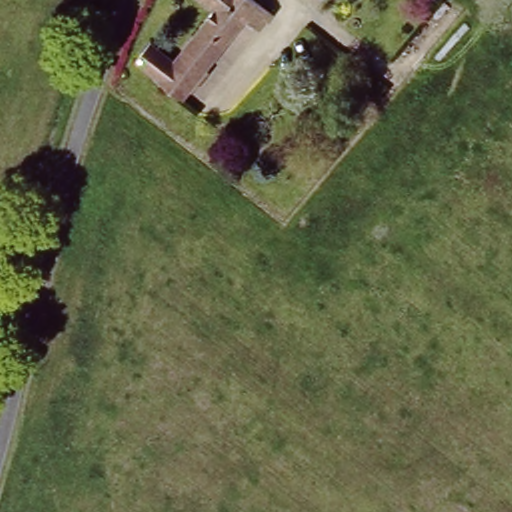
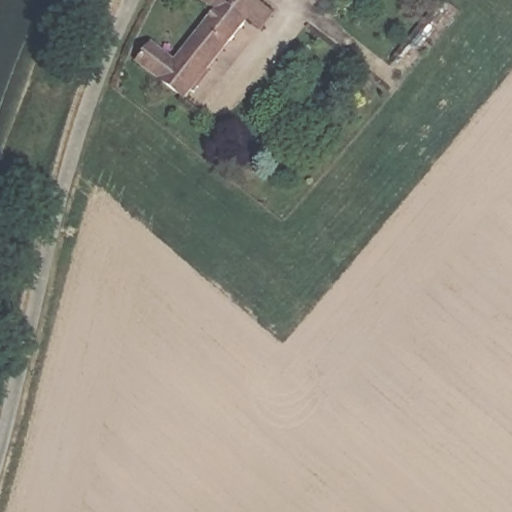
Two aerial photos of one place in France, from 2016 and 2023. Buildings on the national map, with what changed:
unchanged [(256,0),(274,13),(262,28),(248,17),(185,97),(139,60),(152,43),(175,61),(215,9),(204,0),(256,0)]

